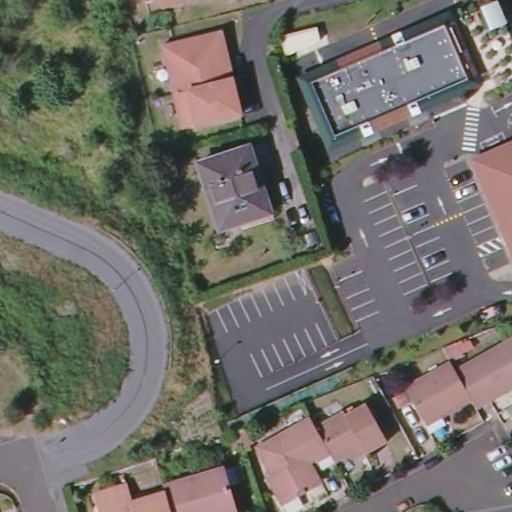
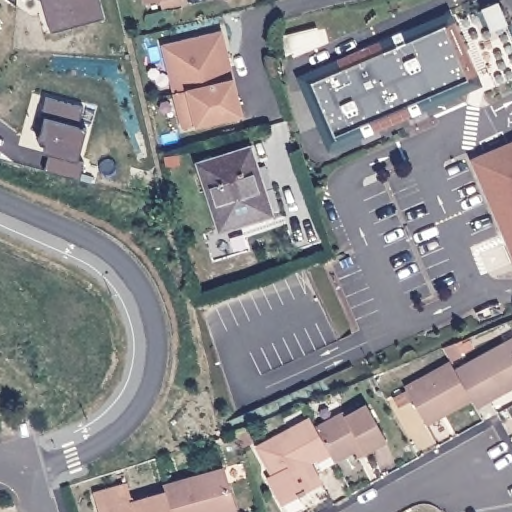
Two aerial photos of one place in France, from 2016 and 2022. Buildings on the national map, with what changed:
new [(106,22),(54,33),(42,15),(46,12),(44,0),(100,0),(106,22)]
unchanged [(151,2),(150,0),(160,0),(151,2)]
unchanged [(188,1),(166,7),(164,0),(188,0),(188,1)]
unchanged [(323,110),(315,113),(311,94),(314,92),(309,78),(448,18),(474,78),(334,138),(323,110)]
unchanged [(286,55),(281,36),(318,27),(321,39),(286,55)]
unchanged [(242,115),(184,129),(164,44),(222,30),(242,115)]
new [(83,109),(78,129),(86,131),(78,164),(84,166),(79,184),(43,174),(51,147),(38,143),(49,100),(83,109)]
unchanged [(468,155),(512,136),(512,258),(468,155)]
unchanged [(199,163),(251,147),(258,168),(253,170),(267,215),(221,230),(199,163)]
unchanged [(512,340),(512,389),(477,408),(472,400),(463,384),(456,371),(512,340)]
unchanged [(423,420),(405,387),(451,362),(456,371),(463,384),(472,400),(448,413),(426,425),(423,420)]
unchanged [(351,416),(372,405),(393,442),(371,453),(368,447),(341,462),(336,453),(321,427),(349,412),(351,416)]
unchanged [(321,461),(321,459),(309,465),(321,484),(310,490),(311,492),(304,496),(303,494),(287,502),(274,477),(278,475),(263,447),(316,418),(321,427),(336,453),(321,461)]
unchanged [(166,488),(164,481),(224,464),(236,506),(216,512),(173,512),(173,510),(166,488)]
unchanged [(94,488),(128,478),(131,491),(133,497),(166,488),(173,510),(173,512),(101,512),(98,501),(94,488)]

